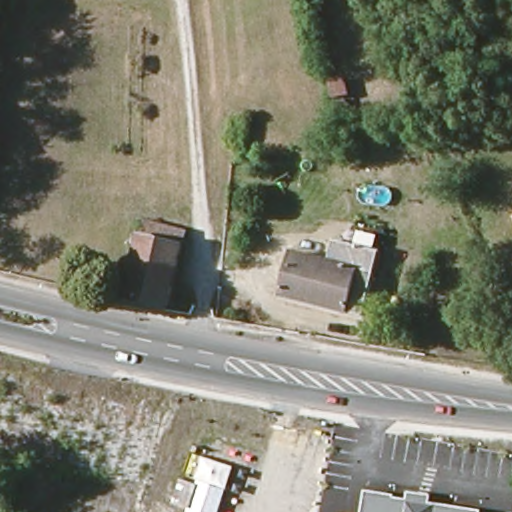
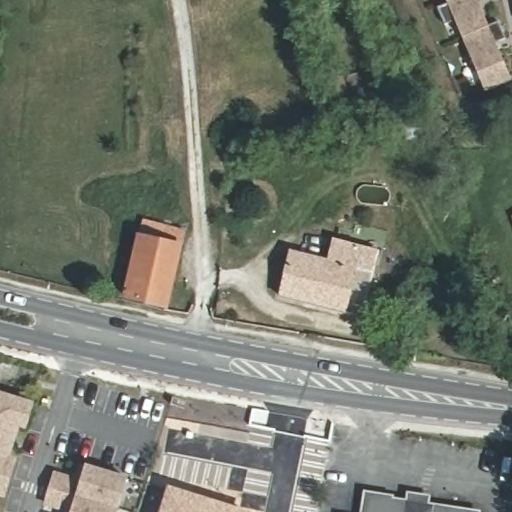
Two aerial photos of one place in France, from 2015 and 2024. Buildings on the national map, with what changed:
new [(477,0),(488,26),(464,38),(456,20),(446,25),(438,8),(448,3),(456,0),(477,0)]
new [(456,0),(448,3),(447,0),(456,0)]
new [(497,42),(512,80),(486,91),(464,38),(488,26),(498,22),(505,38),(497,42)]
unchanged [(340,129),(332,101),(326,81),(341,76),(347,97),(341,99),(350,126),(340,129)]
demolished [(352,173),(350,181),(342,179),(344,171),(352,173)]
unchanged [(127,295),(142,235),(146,219),(187,229),(184,245),(170,306),(127,295)]
unchanged [(276,298),(288,254),(327,264),(332,245),(362,252),(377,256),(372,275),(360,319),(276,298)]
new [(28,403),(3,483),(0,482),(0,395),(28,403)]
new [(51,504),(56,489),(60,474),(87,483),(82,497),(92,467),(132,479),(122,512),(76,512),(51,504)]
new [(167,485),(252,512),(251,512),(159,512),(167,485)]
unchanged [(366,490),(393,494),(394,498),(407,499),(409,491),(432,494),(431,503),(481,511),(481,512),(362,512),(366,490)]
new [(1,492),(0,494),(0,492),(1,492)]

